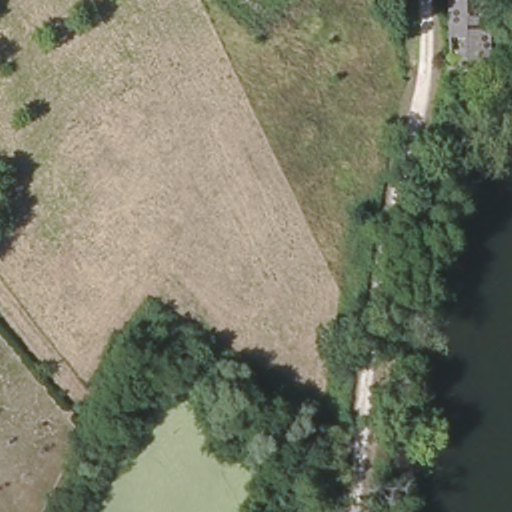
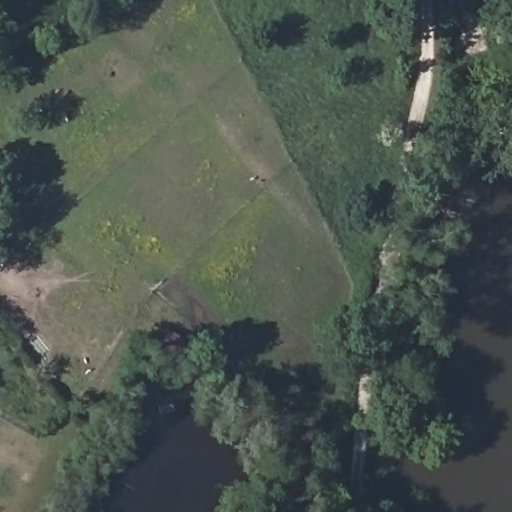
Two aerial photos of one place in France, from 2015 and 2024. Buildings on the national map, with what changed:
unchanged [(450,59),(450,0),(491,0),(491,59),(450,59)]

